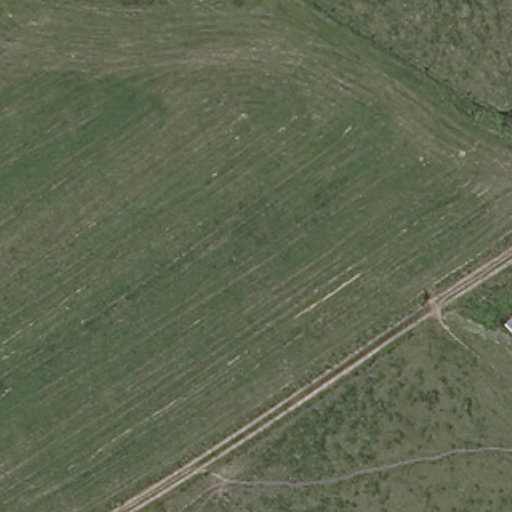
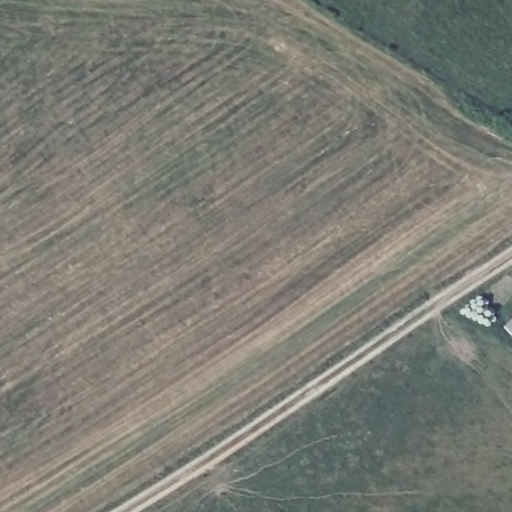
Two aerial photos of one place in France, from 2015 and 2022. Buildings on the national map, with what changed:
unchanged [(512,321),(512,343),(502,332),(512,321)]

